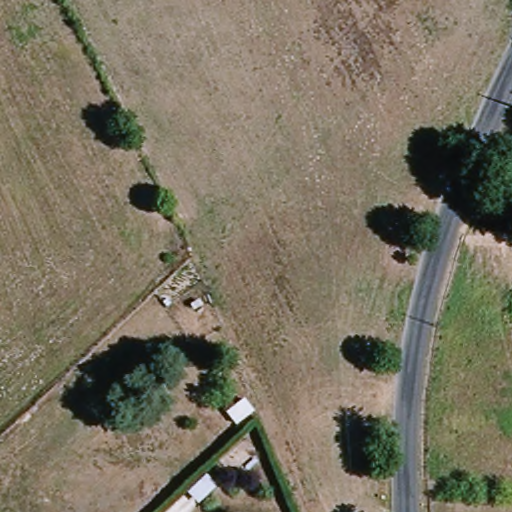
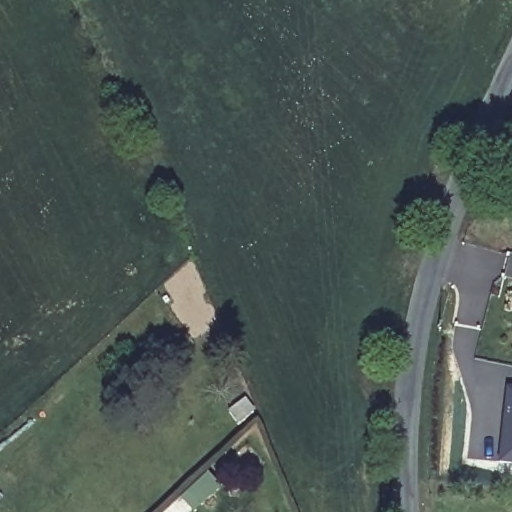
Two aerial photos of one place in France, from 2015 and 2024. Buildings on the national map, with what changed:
new [(500,462),(506,386),(512,387),(512,463),(500,462)]
unchanged [(207,472),(217,485),(198,503),(186,491),(207,472)]

